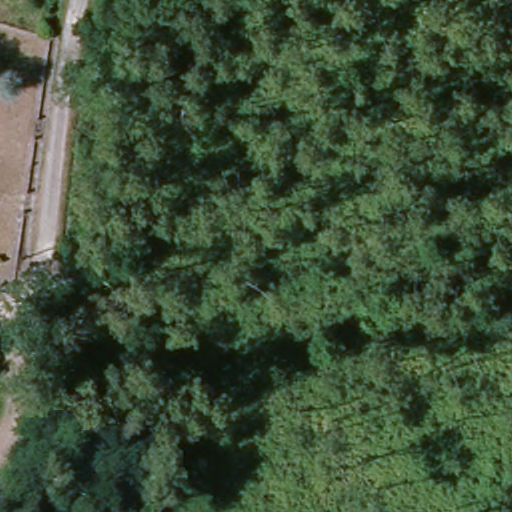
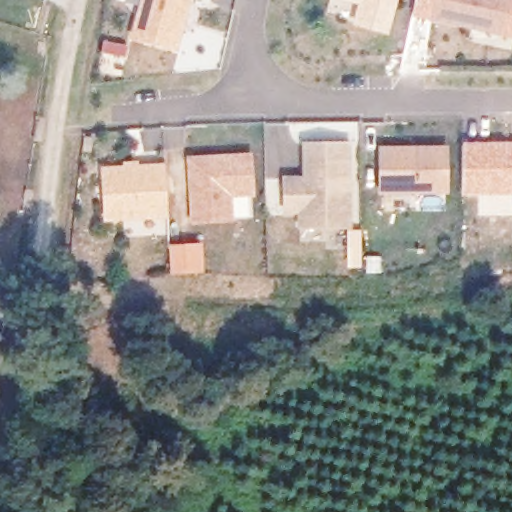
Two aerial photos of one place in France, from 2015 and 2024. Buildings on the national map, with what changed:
new [(130,38),(140,0),(193,0),(178,49),(130,38)]
new [(352,24),(358,5),(338,0),(399,0),(389,35),(352,24)]
new [(434,0),(512,0),(512,1),(504,36),(430,20),(434,0)]
new [(300,229),(299,214),(284,215),(283,178),(303,177),(303,143),(352,144),(352,229),(300,229)]
new [(512,144),(512,195),(462,194),(462,144),(512,144)]
new [(381,196),(380,148),(448,147),(450,194),(381,196)]
new [(252,153),(255,197),(232,198),(233,222),(191,224),(187,158),(252,153)]
new [(104,223),(101,169),(164,164),(168,219),(104,223)]
new [(170,274),(169,245),(202,244),(204,273),(170,274)]

